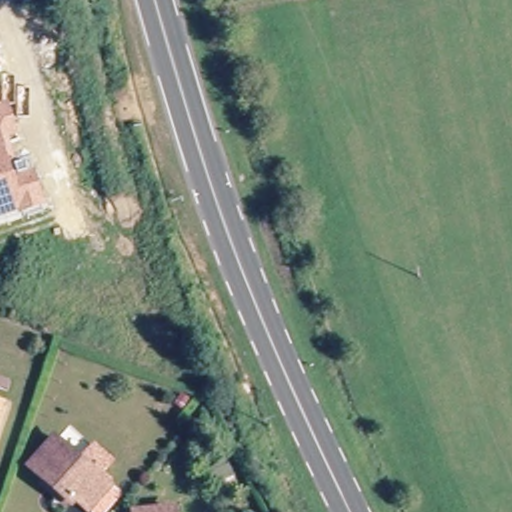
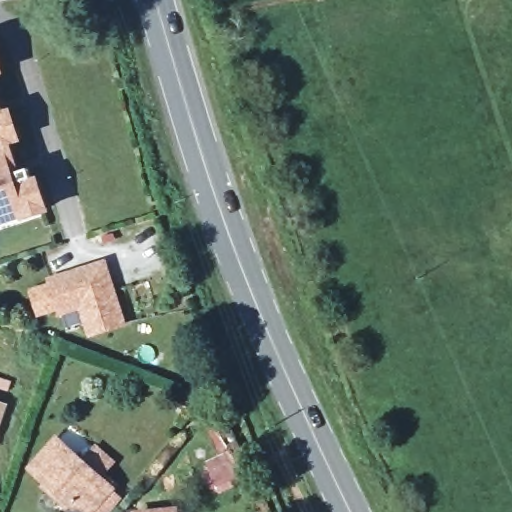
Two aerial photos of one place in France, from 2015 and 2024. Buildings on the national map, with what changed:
unchanged [(0,75),(0,61),(4,74),(0,75)]
unchanged [(22,142),(11,145),(19,173),(28,171),(30,179),(38,177),(49,212),(22,222),(20,219),(0,225),(0,149),(0,147),(0,111),(13,109),(22,142)]
new [(104,264),(123,325),(89,336),(81,308),(60,315),(49,281),(104,264)]
unchanged [(6,397),(0,395),(0,381),(11,386),(6,397)]
unchanged [(0,412),(3,412),(0,419),(0,412)]
unchanged [(114,487),(91,512),(79,501),(74,505),(34,468),(59,439),(114,487)]
unchanged [(170,512),(135,512),(169,508),(170,512)]

